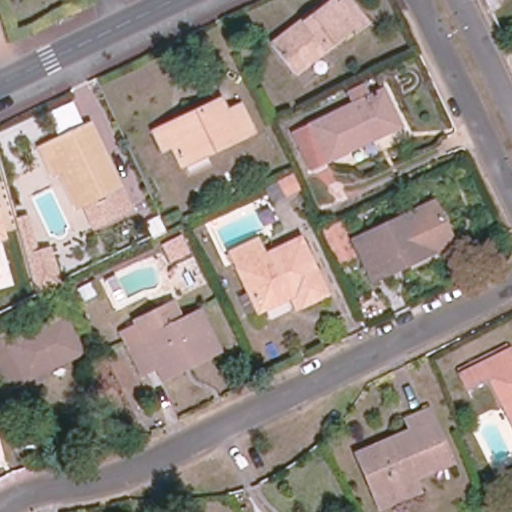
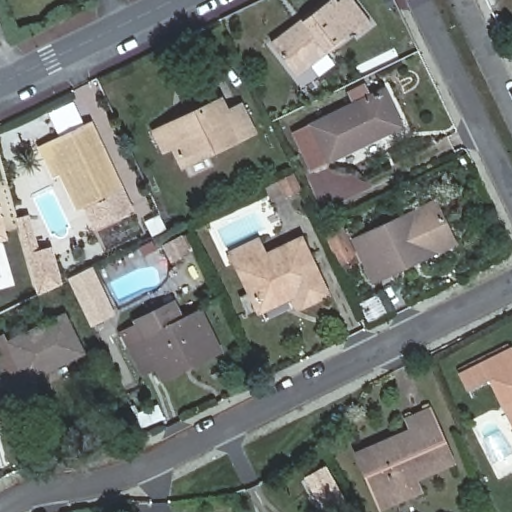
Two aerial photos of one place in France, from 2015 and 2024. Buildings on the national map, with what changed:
unchanged [(376,24),(363,34),(360,29),(300,74),(278,44),(335,0),(340,0),(341,2),(344,0),(358,0),(376,24)]
unchanged [(294,133),(308,126),(354,104),(349,93),(364,86),(369,97),(384,90),(401,126),(325,163),(311,169),(294,133)]
unchanged [(154,132),(185,117),(221,99),(227,111),(241,105),(254,131),(182,167),(172,148),(163,152),(154,132)]
unchanged [(92,124),(122,189),(119,190),(128,208),(89,226),(81,208),(76,210),(46,145),(92,124)]
unchanged [(299,190),(286,196),(279,180),(290,175),(291,174),(299,190)]
unchanged [(373,282),(353,240),(434,201),(454,244),(437,252),(410,265),(373,282)]
unchanged [(17,219),(26,217),(36,253),(49,249),(59,284),(38,294),(17,219)]
unchanged [(349,243),(333,251),(332,250),(323,231),(339,224),(349,243)]
unchanged [(2,236),(0,237),(0,229),(2,236)]
unchanged [(189,253),(171,262),(163,245),(181,236),(189,253)]
unchanged [(325,294),(298,306),(292,294),(259,310),(234,254),(256,243),(263,258),(299,241),(325,294)]
unchanged [(96,295),(84,300),(79,290),(90,284),(96,295)]
unchanged [(219,352),(188,367),(185,360),(164,370),(162,365),(143,374),(130,348),(133,347),(125,331),(137,325),(135,322),(174,303),(182,320),(200,311),(219,352)]
unchanged [(82,353),(9,387),(0,368),(0,338),(5,336),(8,343),(65,316),(82,353)]
unchanged [(473,393),(466,379),(512,356),(512,417),(494,382),(473,393)]
unchanged [(414,479),(419,491),(380,508),(359,458),(357,454),(383,443),(412,430),(407,419),(429,410),(452,463),(414,479)]

